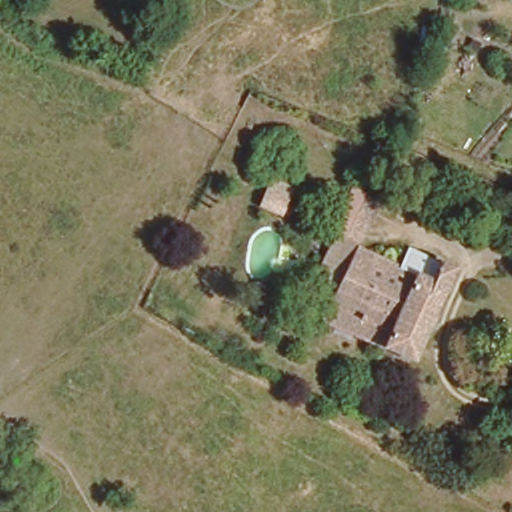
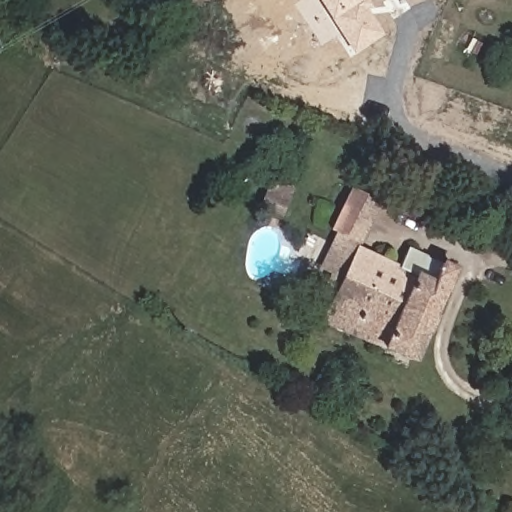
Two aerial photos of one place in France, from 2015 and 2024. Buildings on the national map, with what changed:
new [(384,34),(353,54),(318,0),(369,0),(363,4),(384,34)]
new [(272,179),(292,188),(281,214),(261,205),(272,179)]
unchanged [(318,321),(352,242),(428,268),(436,255),(458,266),(411,361),(318,321)]

